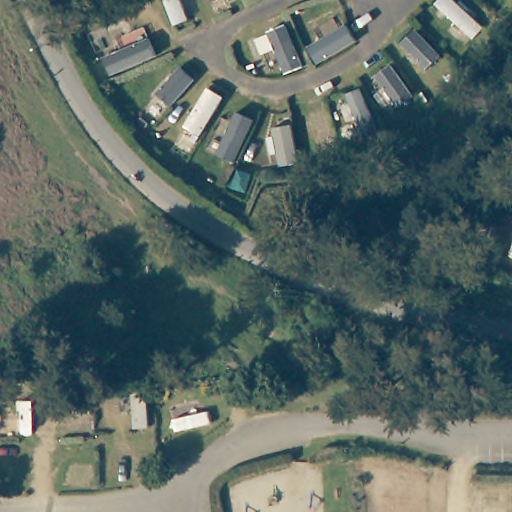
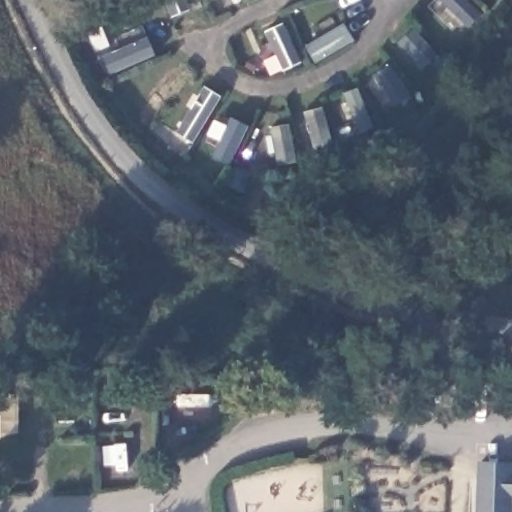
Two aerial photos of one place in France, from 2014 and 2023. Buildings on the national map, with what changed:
new [(512,511),(512,512),(475,512),(477,462),(512,463),(512,511)]

